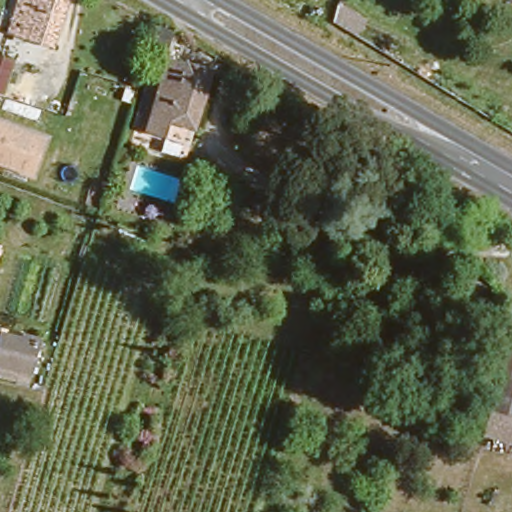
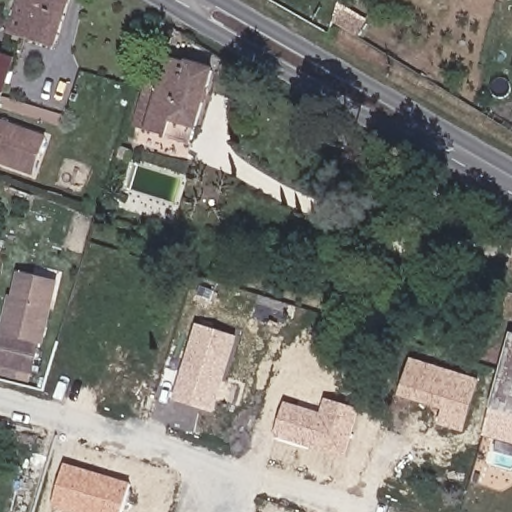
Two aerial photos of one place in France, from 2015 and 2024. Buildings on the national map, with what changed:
unchanged [(7,25),(15,0),(64,0),(52,40),(7,25)]
unchanged [(358,37),(335,22),(339,2),(368,20),(358,37)]
unchanged [(130,132),(134,120),(154,44),(210,59),(189,135),(157,126),(153,138),(130,132)]
unchanged [(8,55),(1,85),(0,84),(0,53),(8,55)]
unchanged [(33,76),(36,62),(45,63),(42,77),(33,76)]
unchanged [(32,178),(0,166),(0,118),(48,137),(32,178)]
unchanged [(131,146),(140,149),(138,157),(129,155),(131,146)]
unchanged [(1,236),(0,237),(0,236),(1,236)]
new [(1,331),(9,295),(13,295),(19,272),(61,282),(45,343),(41,342),(8,332),(1,331)]
new [(199,325),(235,336),(214,413),(176,401),(199,325)]
unchanged [(512,327),(512,390),(510,396),(488,387),(507,326),(512,327)]
unchanged [(41,342),(32,374),(0,365),(0,357),(8,332),(41,342)]
new [(439,425),(444,410),(400,397),(412,358),(482,380),(466,433),(439,425)]
unchanged [(481,408),(488,387),(510,396),(512,390),(512,440),(475,428),(481,408)]
new [(275,436),(285,402),(322,412),(327,398),(362,410),(346,458),(275,436)]
new [(53,509),(66,463),(132,483),(124,512),(64,512),(53,509)]

